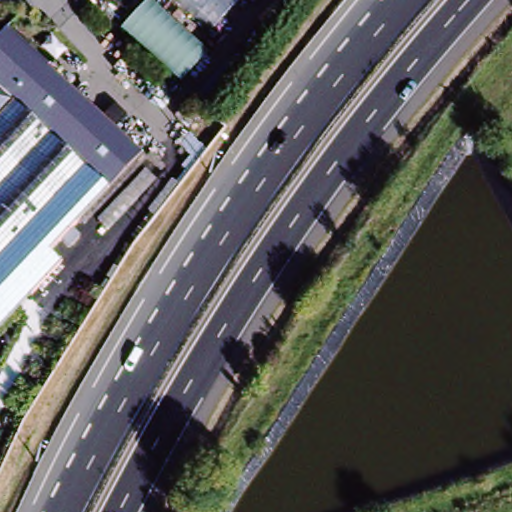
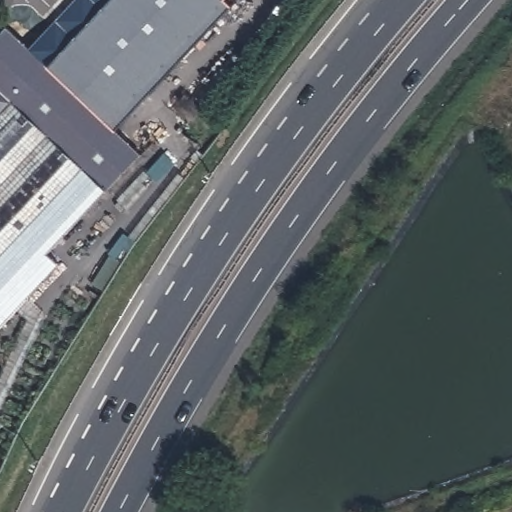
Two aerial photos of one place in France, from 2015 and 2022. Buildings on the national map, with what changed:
new [(50,67),(35,52),(30,48),(79,0),(228,0),(233,5),(116,129),(50,67)]
demolished [(115,29),(138,0),(152,0),(208,46),(180,81),(115,29)]
unchanged [(35,52),(141,153),(48,252),(59,263),(0,325),(0,31),(6,25),(35,52)]

